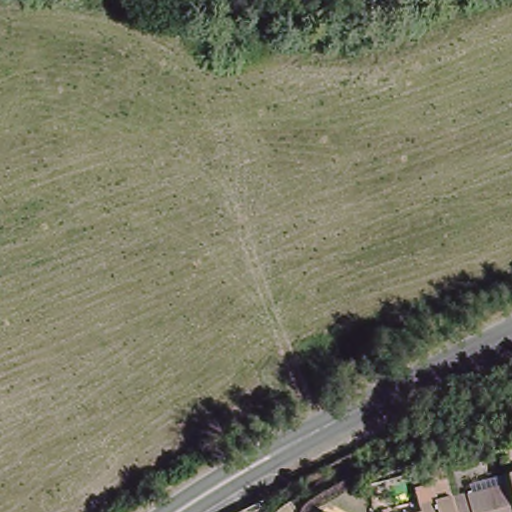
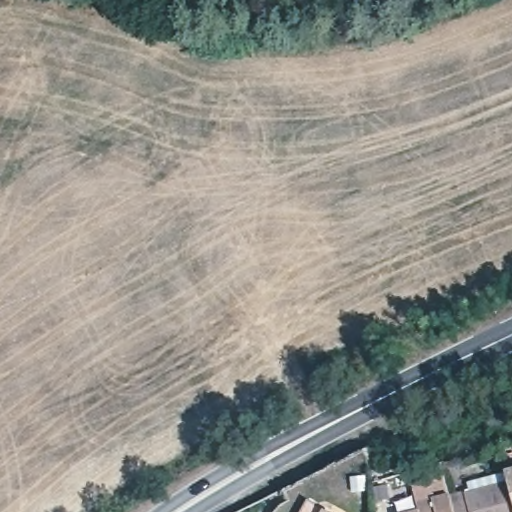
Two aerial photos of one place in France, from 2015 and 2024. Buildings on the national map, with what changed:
unchanged [(507,467),(512,466),(512,490),(510,480),(507,467)]
unchanged [(395,500),(411,496),(410,487),(445,478),(450,495),(454,512),(397,512),(395,500)]
unchanged [(512,512),(454,512),(450,495),(510,480),(512,490),(512,512)]
unchanged [(327,512),(317,512),(320,508),(327,512)]

